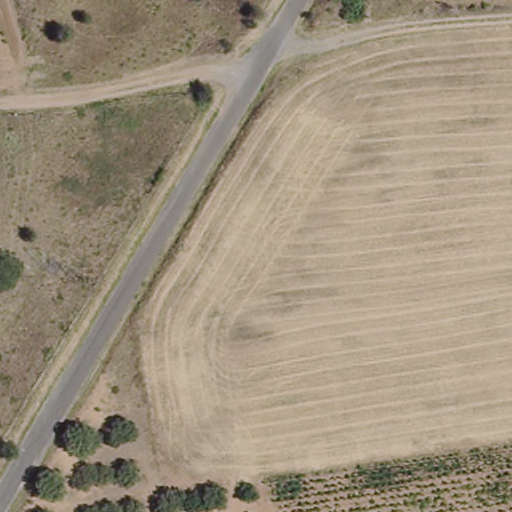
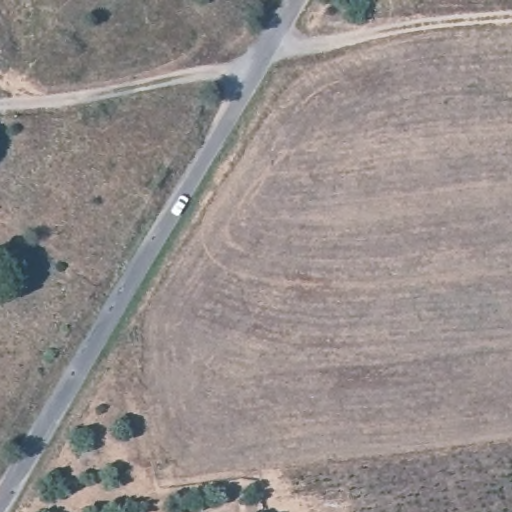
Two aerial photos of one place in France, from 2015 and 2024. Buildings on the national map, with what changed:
unchanged [(346,21),(331,21),(331,12),(347,11),(346,21)]

